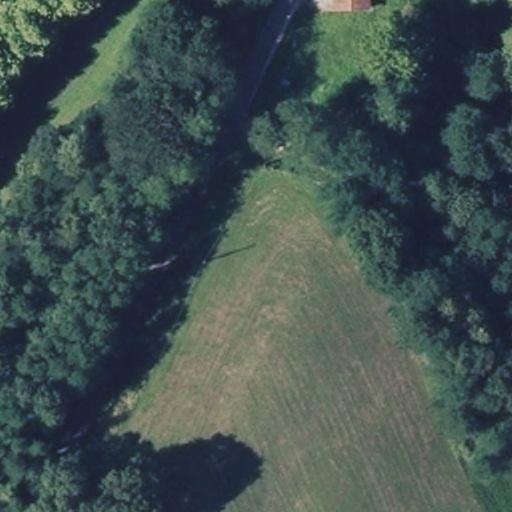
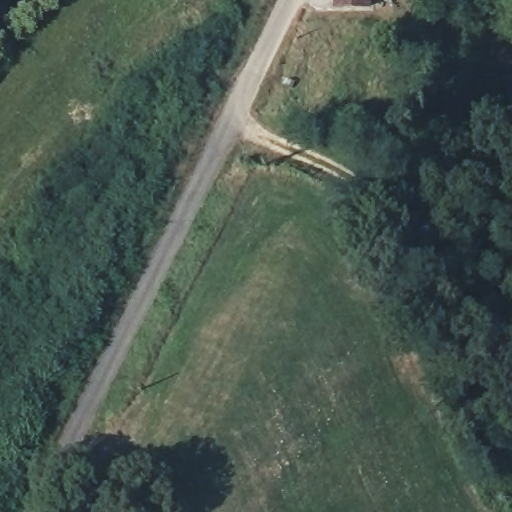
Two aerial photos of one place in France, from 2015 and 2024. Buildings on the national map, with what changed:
unchanged [(343,14),(343,0),(374,0),(375,14),(343,14)]
unchanged [(281,101),(287,105),(289,104),(293,109),(285,120),(275,114),(281,101)]

